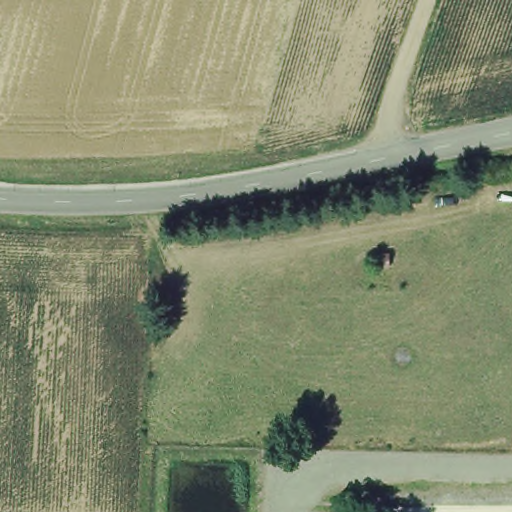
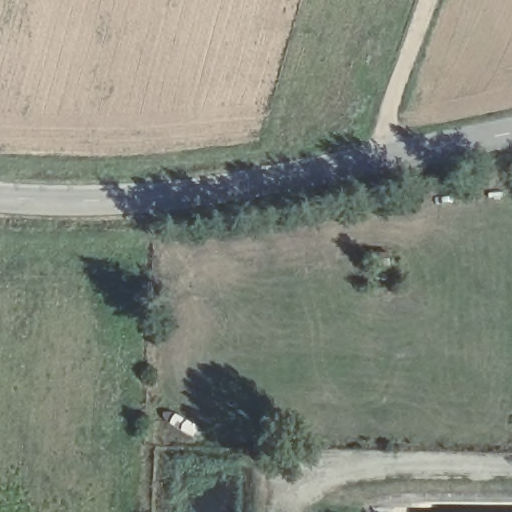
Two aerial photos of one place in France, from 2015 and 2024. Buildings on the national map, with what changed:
unchanged [(375,268),(375,256),(390,256),(390,268),(375,268)]

